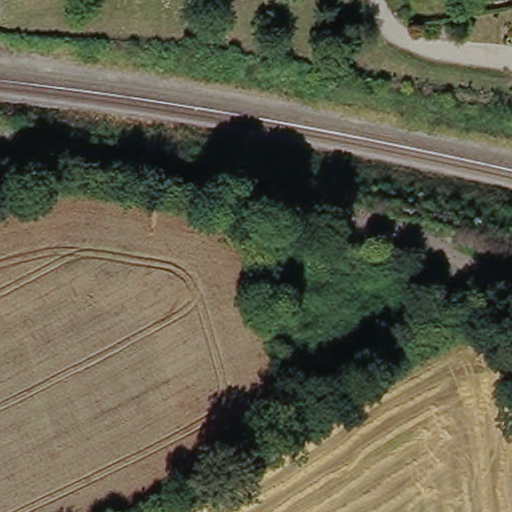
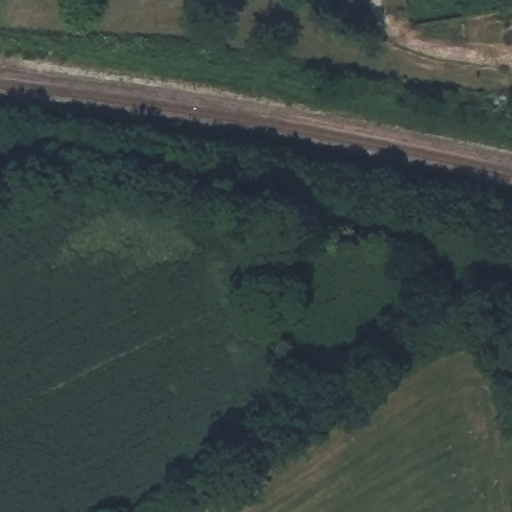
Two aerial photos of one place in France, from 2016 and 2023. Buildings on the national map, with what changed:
unchanged [(512,22),(512,35),(511,22),(512,22)]

